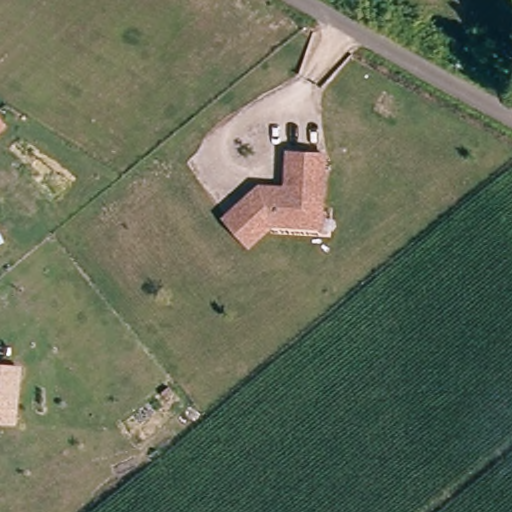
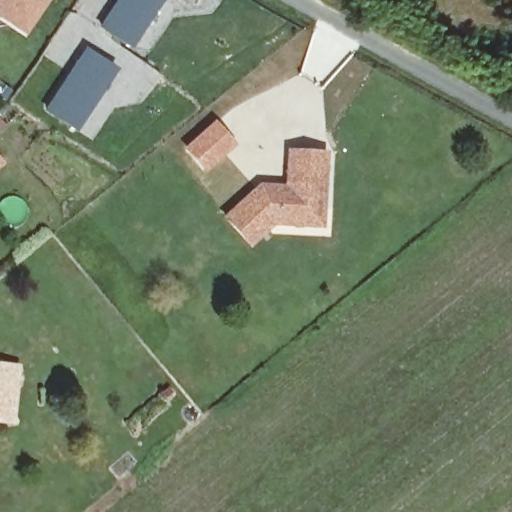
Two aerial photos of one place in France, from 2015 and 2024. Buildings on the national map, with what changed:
new [(24,34),(0,18),(0,0),(46,0),(24,34)]
new [(160,1),(130,47),(100,28),(118,0),(161,0),(160,1)]
new [(97,60),(115,71),(106,84),(76,130),(47,111),(85,52),(97,60)]
unchanged [(303,222),(273,221),(272,222),(250,243),(225,216),(260,185),(270,186),(287,186),(289,150),(325,152),(322,207),(321,223),(303,222)]
unchanged [(0,424),(0,369),(16,370),(15,390),(4,389),(2,402),(5,402),(13,403),(11,425),(2,424),(0,424)]

